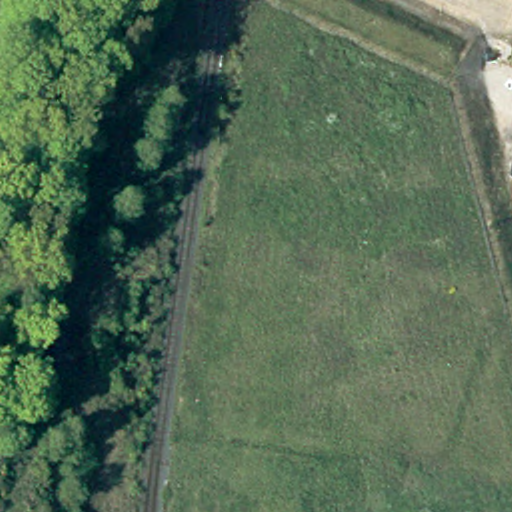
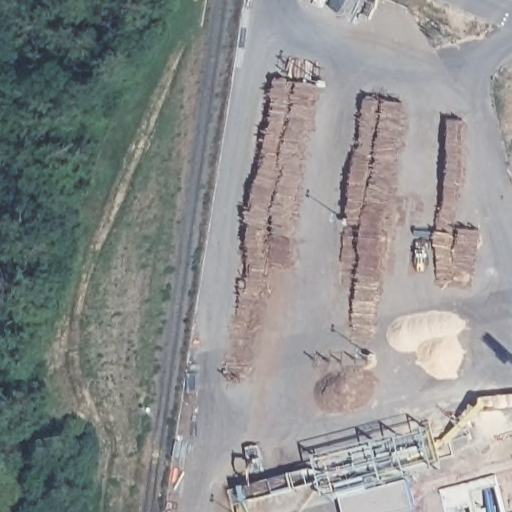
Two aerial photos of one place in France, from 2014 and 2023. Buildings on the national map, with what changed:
new [(345,512),(342,499),(409,481),(416,508),(403,512),(345,512)]

